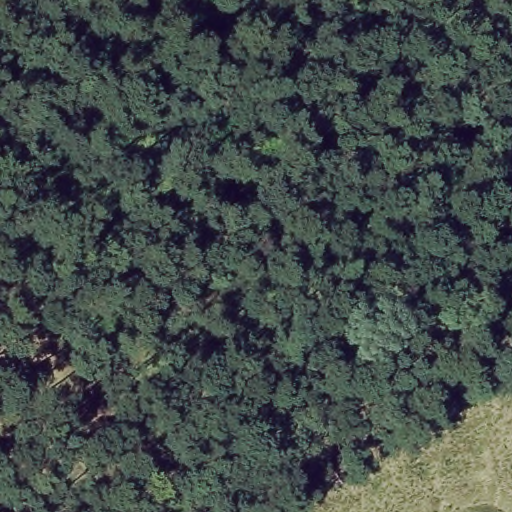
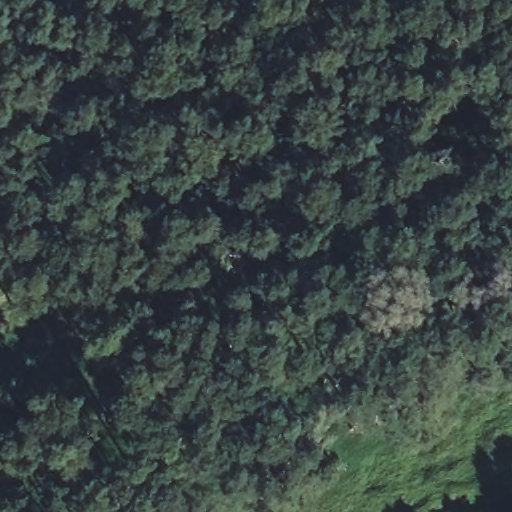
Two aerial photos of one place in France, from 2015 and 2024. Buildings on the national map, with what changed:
[]

